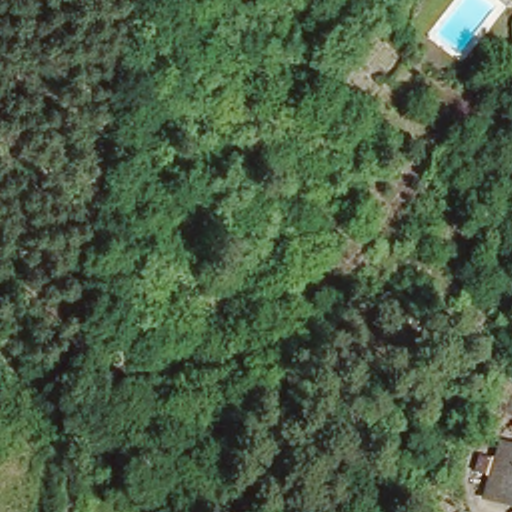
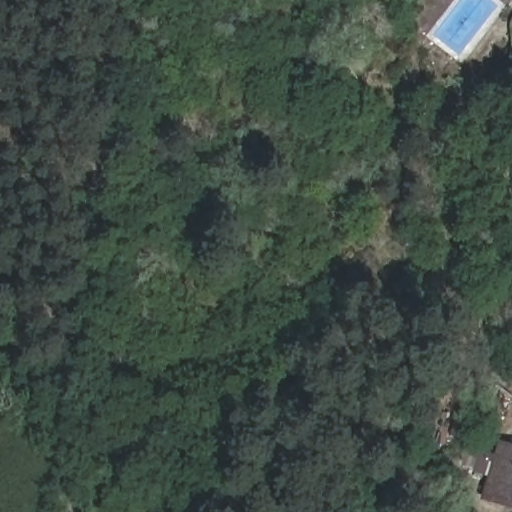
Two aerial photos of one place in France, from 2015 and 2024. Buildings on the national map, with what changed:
unchanged [(512,500),(486,494),(498,440),(512,444),(512,500)]

